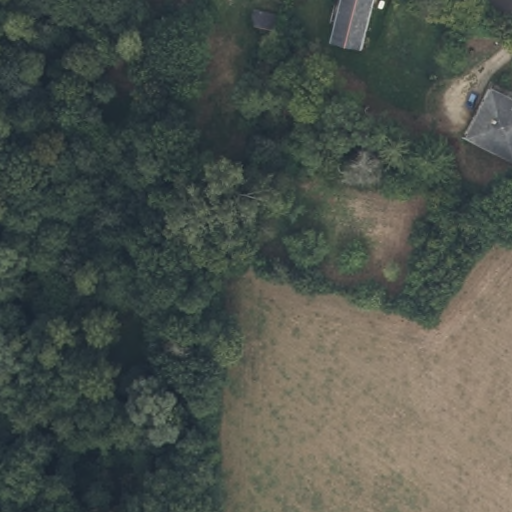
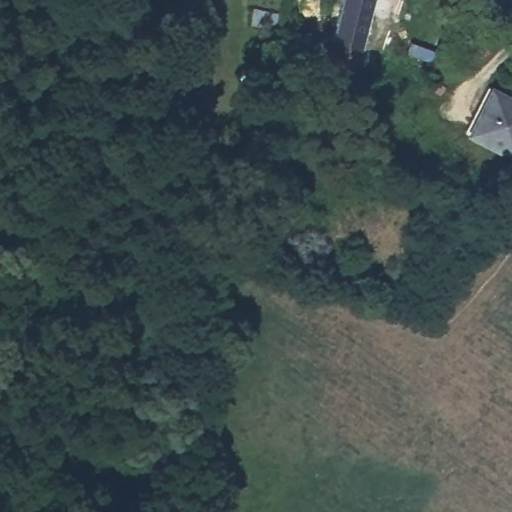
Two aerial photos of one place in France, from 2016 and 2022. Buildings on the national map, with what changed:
unchanged [(245,15),(249,0),(269,0),(275,1),(269,19),(245,15)]
unchanged [(339,39),(345,8),(346,0),(373,0),(371,12),(365,44),(339,39)]
unchanged [(471,132),(496,87),(512,97),(512,156),(471,132)]

